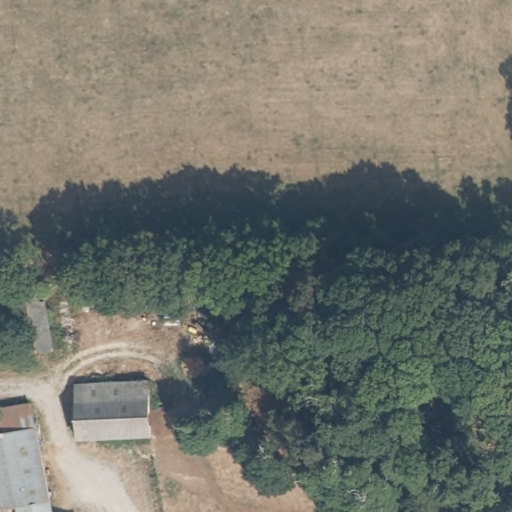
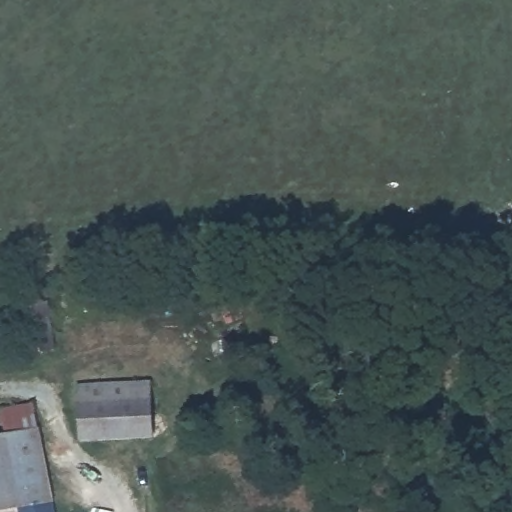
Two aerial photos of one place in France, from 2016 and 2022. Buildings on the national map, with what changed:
unchanged [(55,354),(24,359),(12,296),(45,291),(55,354)]
unchanged [(80,441),(78,385),(146,383),(148,438),(80,441)]
unchanged [(4,444),(0,427),(0,414),(33,407),(39,438),(4,444)]
unchanged [(39,438),(52,507),(33,512),(16,512),(4,444),(39,438)]
unchanged [(1,444),(13,512),(0,512),(0,445),(1,444)]
unchanged [(52,507),(53,512),(33,512),(52,507)]

